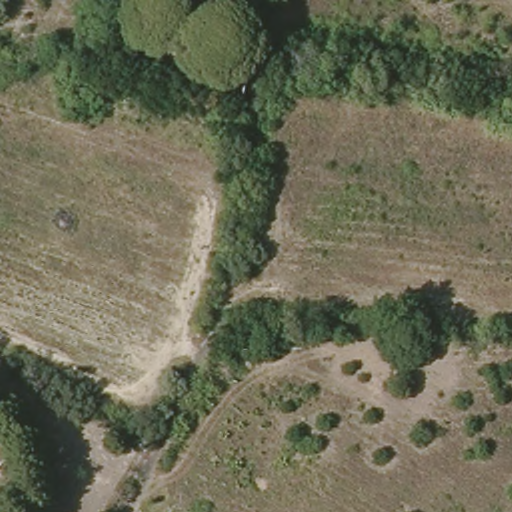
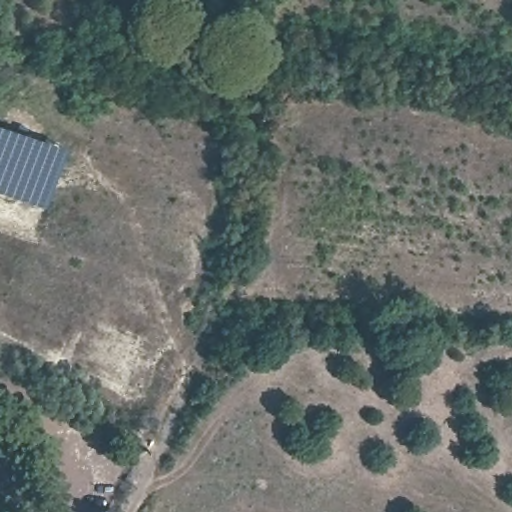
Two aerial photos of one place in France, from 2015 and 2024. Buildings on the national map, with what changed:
new [(67,149),(46,207),(0,192),(0,125),(67,149)]

